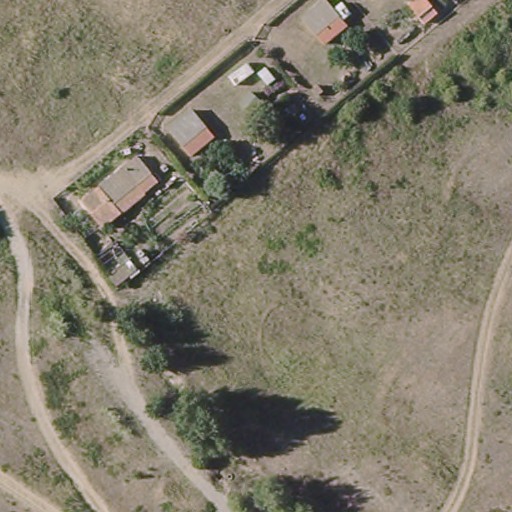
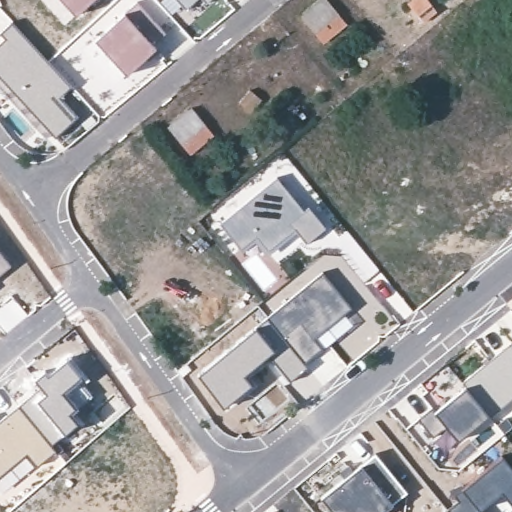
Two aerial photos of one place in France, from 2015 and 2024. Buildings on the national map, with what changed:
new [(61,0),(93,0),(75,16),(61,0)]
new [(195,0),(185,9),(177,0),(195,0)]
new [(203,0),(208,0),(206,3),(203,0)]
unchanged [(297,8),(305,0),(330,0),(334,5),(342,15),(319,34),(311,24),(297,8)]
unchanged [(408,3),(412,0),(426,0),(431,6),(419,16),(408,3)]
new [(125,12),(157,47),(127,75),(94,40),(125,12)]
new [(1,38),(0,37),(0,31),(11,20),(70,86),(59,97),(76,118),(53,138),(49,134),(46,136),(0,86),(0,39),(1,38)]
unchanged [(183,145),(168,128),(192,108),(206,125),(214,135),(191,154),(183,145)]
unchanged [(95,217),(81,200),(137,154),(151,172),(158,181),(103,227),(95,217)]
new [(309,207),(326,228),(307,244),(297,232),(266,255),(255,242),(243,251),(220,224),(277,178),(304,210),(309,207)]
new [(12,267),(0,276),(0,251),(12,267)]
new [(197,373),(255,328),(269,316),(323,273),(350,309),(315,339),(322,348),(304,363),(290,344),(273,358),(247,377),(252,385),(223,408),(197,373)]
new [(490,416),(465,385),(465,384),(463,382),(512,343),(512,398),(490,416)]
new [(290,344),(305,363),(308,366),(291,382),(273,358),(290,344)]
new [(51,445),(19,406),(41,387),(34,379),(45,370),(48,374),(67,359),(72,356),(89,379),(86,382),(83,379),(80,383),(93,397),(79,408),(74,412),(83,421),(79,424),(65,435),(51,446),(51,445)]
new [(465,385),(490,416),(470,434),(458,442),(445,427),(442,431),(444,433),(439,439),(421,419),(431,411),(465,385)]
new [(18,404),(51,445),(55,450),(35,467),(25,454),(0,476),(0,418),(18,404)]
new [(376,454),(408,492),(384,512),(332,512),(320,498),(376,454)]
new [(454,494),(503,456),(512,467),(512,504),(502,493),(481,509),(483,512),(449,512),(446,509),(458,499),(454,494)]
new [(446,509),(449,512),(440,512),(446,509)]

